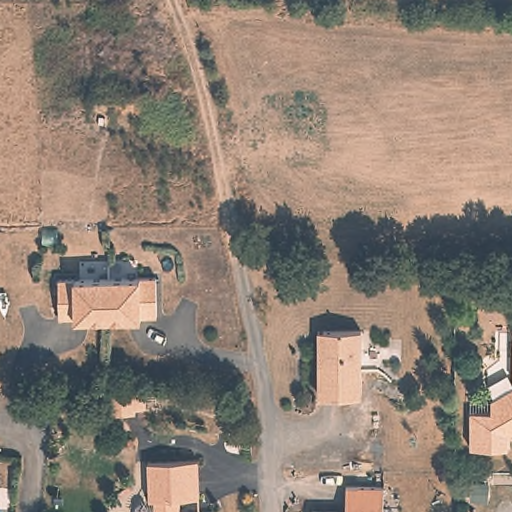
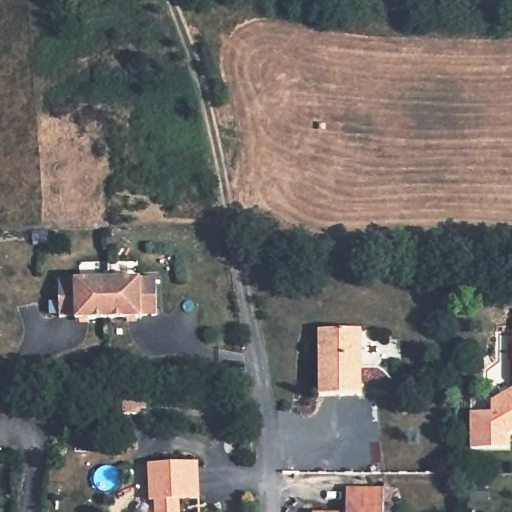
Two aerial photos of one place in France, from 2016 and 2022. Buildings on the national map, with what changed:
unchanged [(160,275),(161,313),(145,313),(145,316),(80,317),(80,315),(64,315),(64,278),(160,275)]
unchanged [(322,324),(364,324),(365,389),(323,389),(322,324)]
unchanged [(494,410),(495,397),(512,387),(512,430),(508,433),(494,410)]
unchanged [(499,417),(508,433),(507,453),(469,453),(468,411),(494,410),(499,417)]
unchanged [(180,497),(180,512),(156,512),(155,497),(150,497),(149,460),(199,459),(200,496),(180,497)]
unchanged [(486,480),(486,497),(470,498),(470,480),(486,480)]
unchanged [(347,511),(347,486),(353,486),(384,487),(384,512),(313,512),(313,510),(347,511)]

